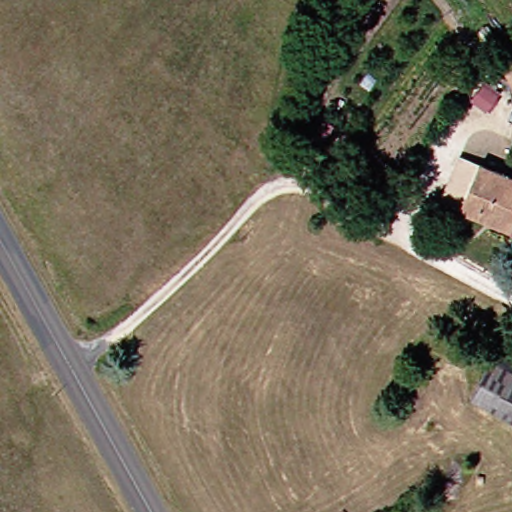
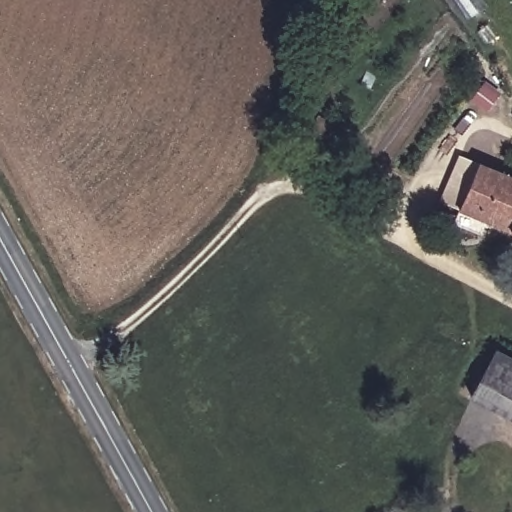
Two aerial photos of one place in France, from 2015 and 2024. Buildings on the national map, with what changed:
unchanged [(428,61),(432,46),(450,54),(446,68),(428,61)]
unchanged [(448,206),(468,160),(490,169),(473,216),(448,206)]
unchanged [(512,177),(512,218),(495,209),(490,218),(484,232),(469,224),(473,216),(490,169),(512,177)]
unchanged [(482,398),(502,351),(512,355),(512,413),(482,398)]

